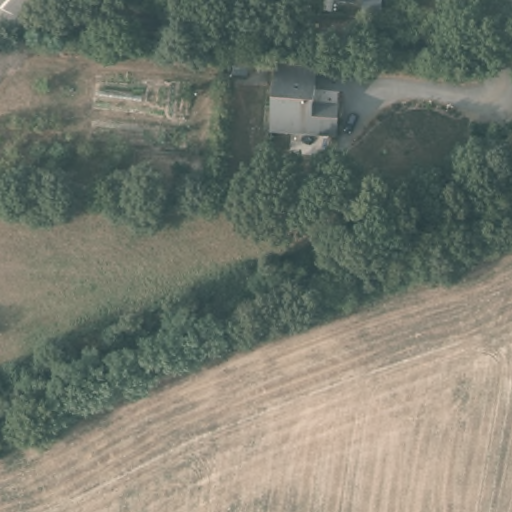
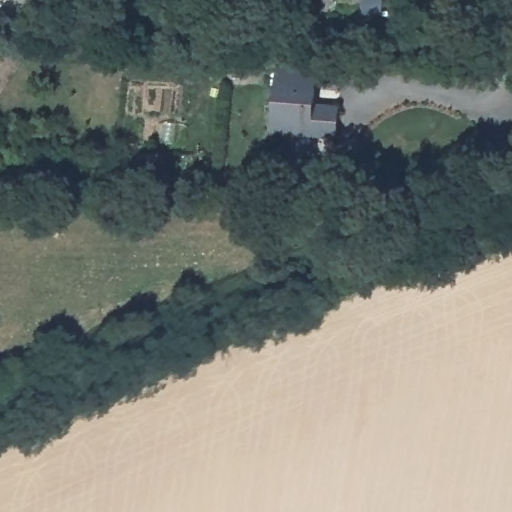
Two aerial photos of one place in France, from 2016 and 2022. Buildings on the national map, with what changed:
unchanged [(338,106),(336,137),(272,132),(278,65),(292,66),(316,70),(315,87),(314,105),(338,106)]

